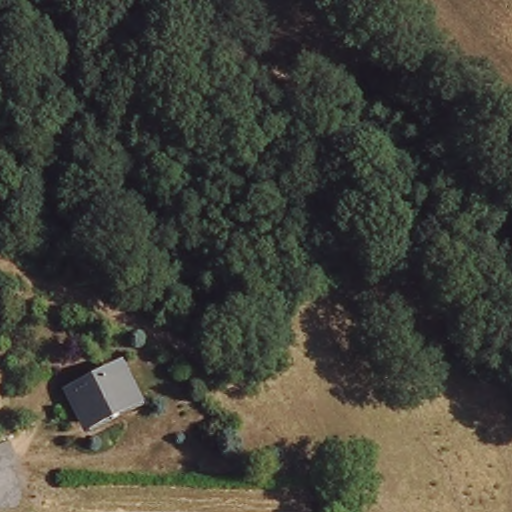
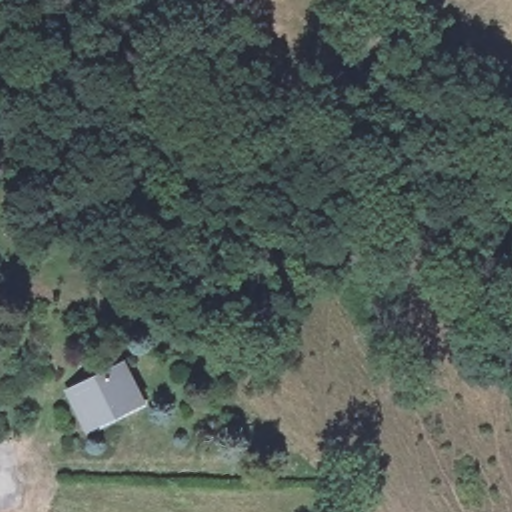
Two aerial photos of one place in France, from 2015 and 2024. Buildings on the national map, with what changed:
unchanged [(116,369),(130,406),(76,423),(63,388),(116,369)]

